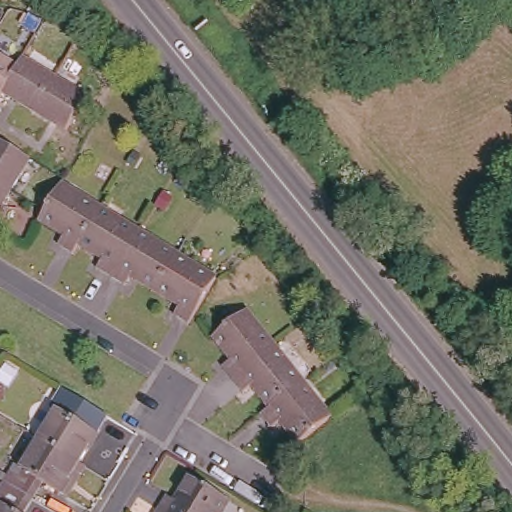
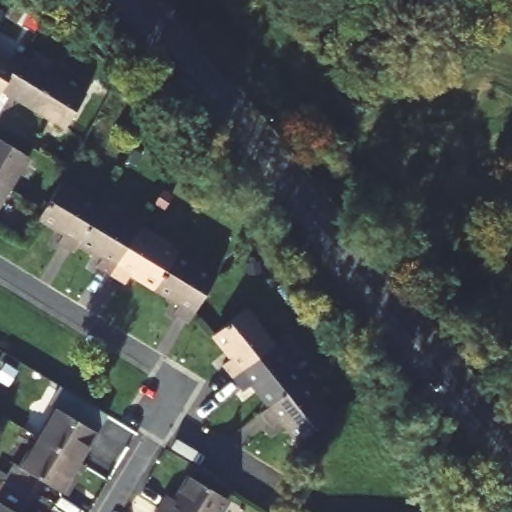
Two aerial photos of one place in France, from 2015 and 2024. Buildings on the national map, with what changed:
unchanged [(25,57),(85,94),(65,127),(4,89),(0,94),(0,54),(18,65),(25,57)]
unchanged [(0,207),(0,140),(30,160),(0,207)]
unchanged [(61,185),(210,276),(186,316),(169,306),(172,300),(131,276),(127,284),(92,263),(95,255),(75,243),(72,250),(53,239),(57,231),(40,220),(61,185)]
unchanged [(253,309),(335,411),(304,436),(290,419),(285,423),(270,405),(275,402),(260,382),(255,386),(230,355),(235,350),(222,333),(253,309)]
unchanged [(89,405),(80,421),(97,432),(80,461),(40,437),(55,411),(50,407),(61,388),(89,405)]
unchanged [(80,461),(62,492),(44,482),(35,498),(6,480),(15,464),(24,467),(40,437),(80,461)]
unchanged [(231,502),(225,512),(162,512),(169,499),(178,502),(192,479),(229,500),(231,502)]
unchanged [(26,512),(0,512),(0,508),(1,506),(0,505),(0,490),(6,480),(35,498),(26,512)]

